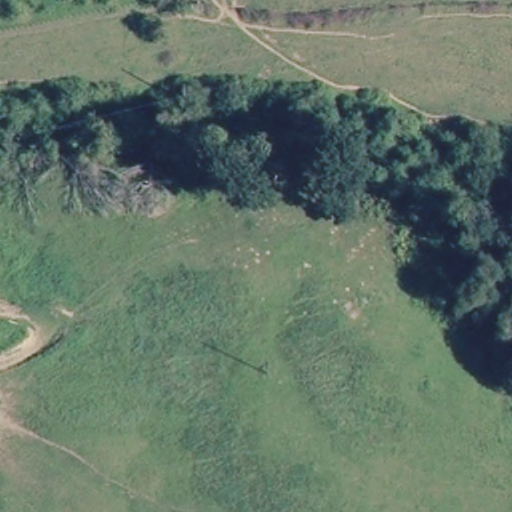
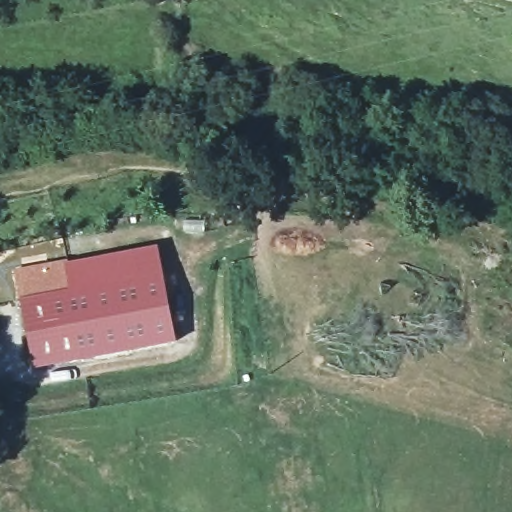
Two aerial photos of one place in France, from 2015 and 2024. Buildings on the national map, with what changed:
new [(175,341),(33,368),(19,299),(14,269),(63,260),(64,263),(157,245),(175,341)]

